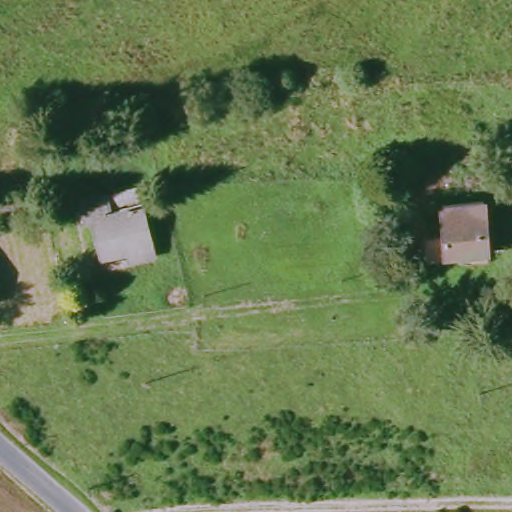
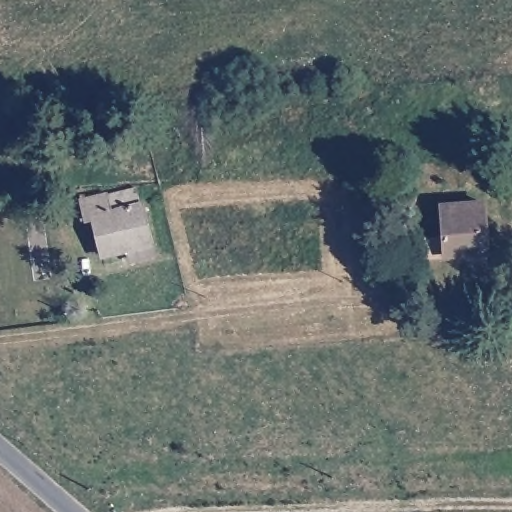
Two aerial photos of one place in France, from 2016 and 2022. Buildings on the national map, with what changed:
unchanged [(85,222),(79,194),(107,188),(109,193),(137,186),(144,201),(160,257),(129,264),(129,254),(104,259),(95,219),(85,222)]
unchanged [(432,255),(432,240),(447,239),(446,200),(488,199),(487,252),(432,255)]

